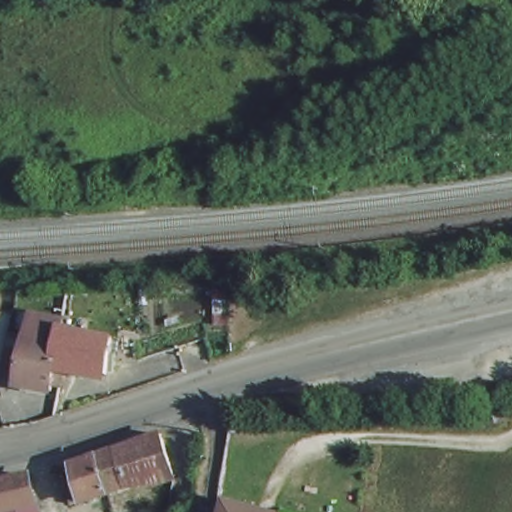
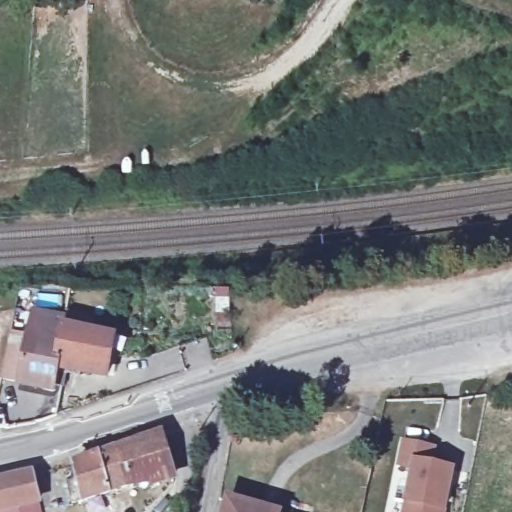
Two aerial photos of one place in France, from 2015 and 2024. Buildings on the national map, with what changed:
unchanged [(8,367),(15,339),(35,343),(39,324),(64,329),(64,333),(117,343),(110,381),(67,374),(62,391),(55,391),(54,396),(24,389),(4,385),(8,367)]
unchanged [(155,480),(153,476),(85,501),(76,465),(161,434),(176,472),(155,480)]
new [(435,464),(453,468),(444,509),(446,510),(446,512),(401,512),(404,505),(400,504),(408,471),(394,466),(400,440),(435,447),(435,464)]
unchanged [(40,501),(41,512),(0,512),(0,479),(35,471),(40,501)]
unchanged [(279,510),(278,512),(222,512),(226,498),(279,510)]

